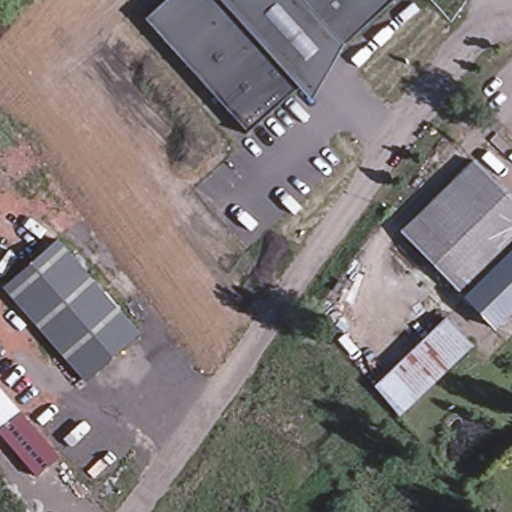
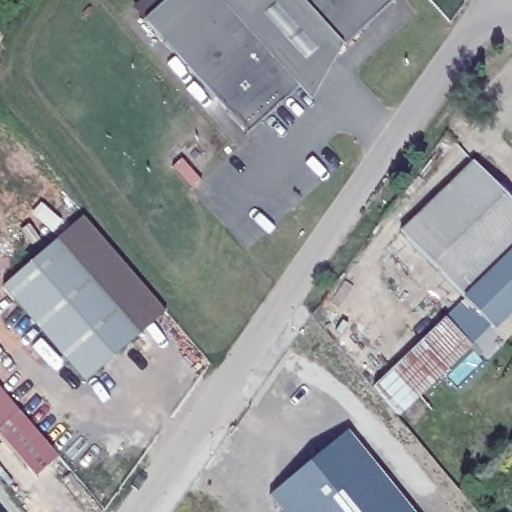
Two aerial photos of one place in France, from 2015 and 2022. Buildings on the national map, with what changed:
unchanged [(392,0),(342,43),(311,97),(296,82),(245,131),(145,17),(164,0),(392,0)]
unchanged [(477,160),(512,196),(512,254),(468,297),(424,253),(405,272),(385,252),(404,232),(477,160)]
new [(164,312),(139,335),(57,240),(82,216),(164,312)]
unchanged [(57,240),(139,335),(84,382),(1,288),(57,240)]
unchanged [(512,254),(512,313),(497,327),(468,297),(512,254)]
unchanged [(444,317),(470,343),(400,413),(375,384),(444,317)]
unchanged [(35,475),(0,434),(0,389),(56,456),(35,475)]
new [(416,512),(281,512),(267,495),(347,429),(416,512)]

